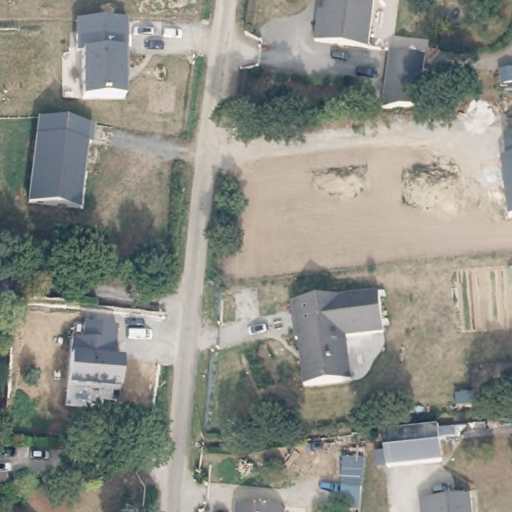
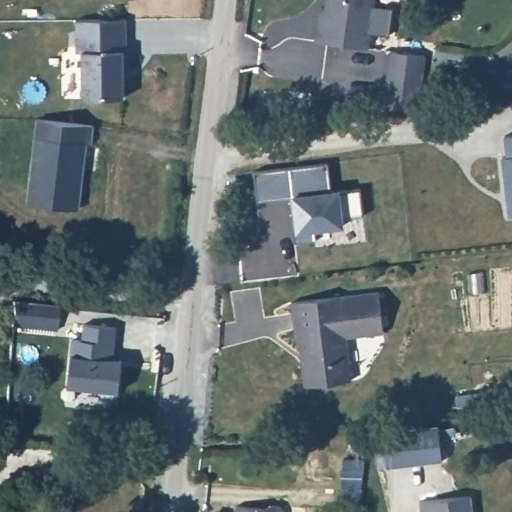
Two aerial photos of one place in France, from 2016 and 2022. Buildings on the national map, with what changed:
unchanged [(322,16),(325,0),(373,0),(368,47),(313,40),(316,16),(322,16)]
unchanged [(124,100),(83,99),(82,50),(77,50),(77,34),(124,35),(124,100)]
unchanged [(390,50),(426,53),(420,103),(383,102),(390,50)]
unchanged [(93,124),(91,143),(86,143),(77,210),(29,204),(39,120),(93,124)]
unchanged [(501,157),(506,156),(503,135),(512,134),(512,214),(507,215),(501,157)]
new [(289,212),(292,212),(289,196),(255,199),(250,172),(326,162),(327,188),(337,187),(338,191),(358,189),(361,214),(340,216),(342,227),(310,230),(314,238),(292,241),(289,212)]
unchanged [(379,294),(382,336),(346,338),(348,383),(305,385),(303,366),(307,364),(307,354),(301,351),(300,340),(295,336),(293,299),(379,294)]
unchanged [(114,326),(112,357),(121,358),(117,391),(67,386),(71,336),(81,338),(82,323),(114,326)]
unchanged [(433,422),(437,457),(382,462),(379,427),(433,422)]
unchanged [(426,500),(468,496),(470,512),(419,512),(418,503),(426,500)]
unchanged [(235,501),(264,504),(270,500),(283,500),(289,507),(289,512),(234,512),(235,501)]

